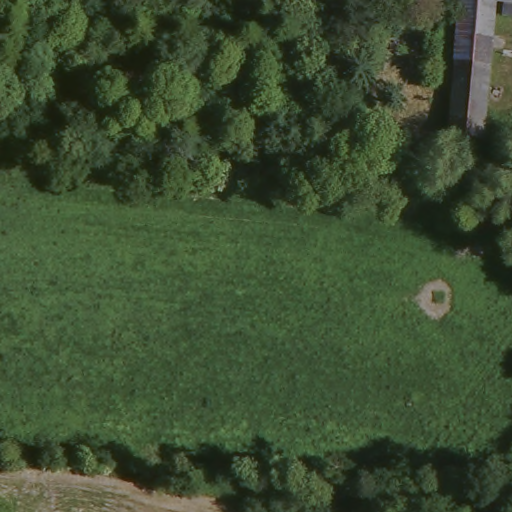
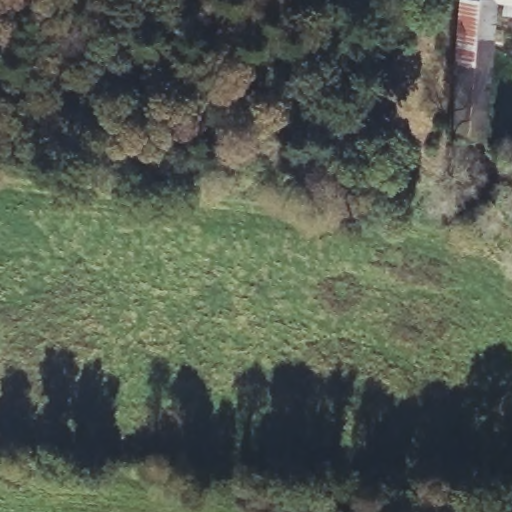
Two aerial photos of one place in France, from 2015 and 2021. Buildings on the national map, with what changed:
unchanged [(461,134),(473,0),(507,0),(497,140),(461,134)]

